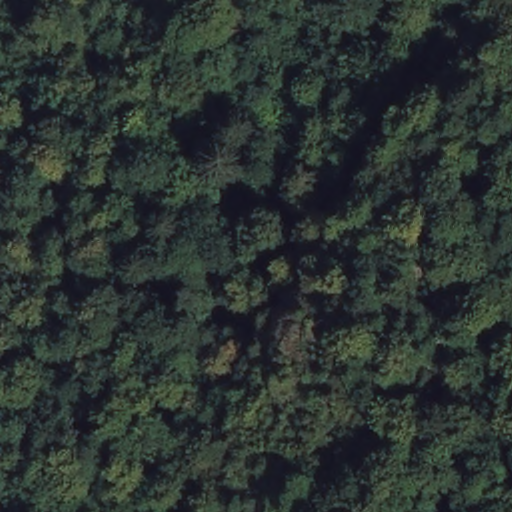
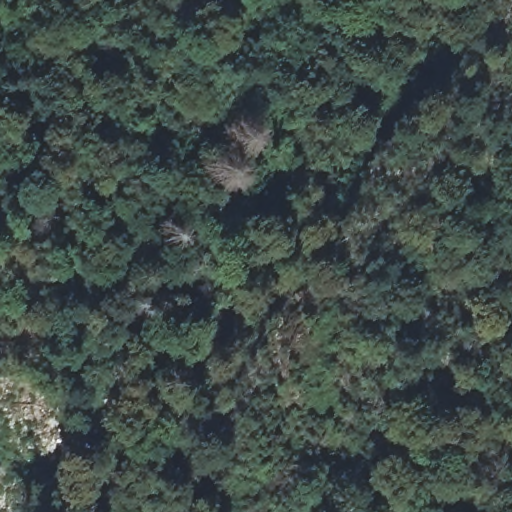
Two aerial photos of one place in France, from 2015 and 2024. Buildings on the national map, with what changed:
[]

